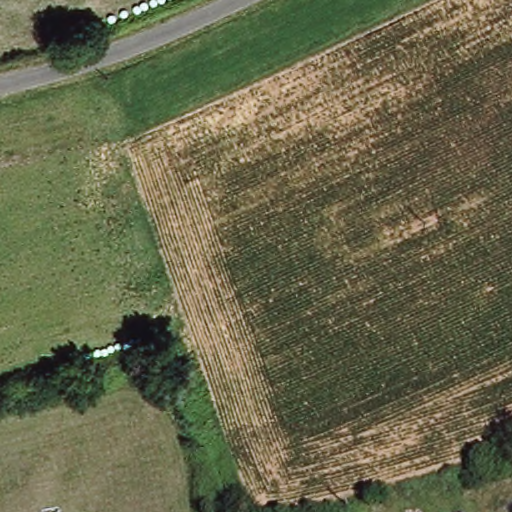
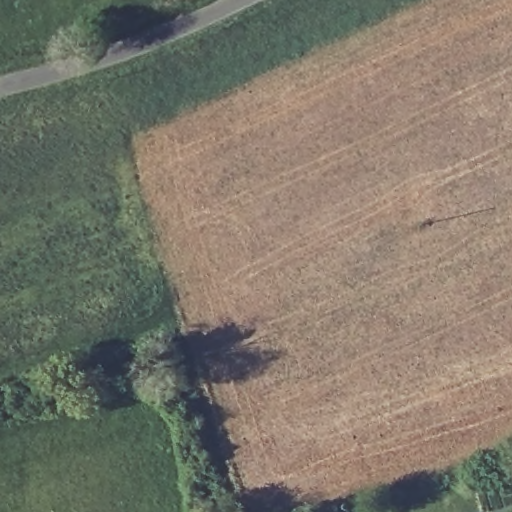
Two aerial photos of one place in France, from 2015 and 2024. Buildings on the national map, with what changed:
unchanged [(445,512),(459,508),(460,512),(445,512)]

